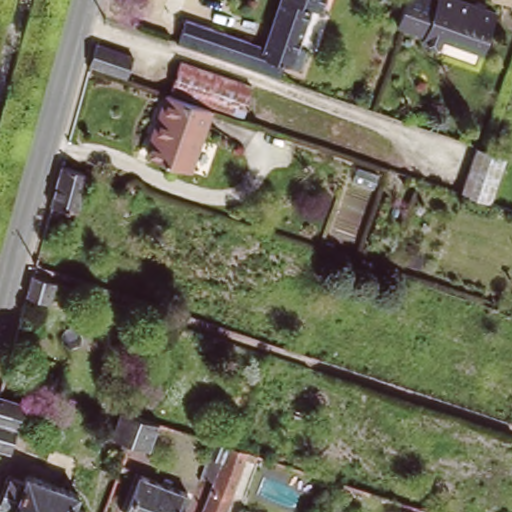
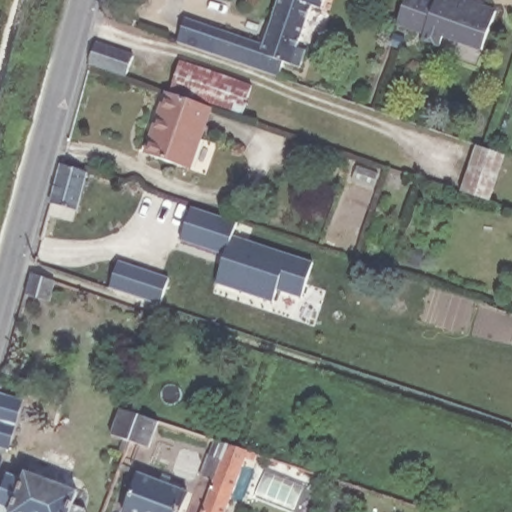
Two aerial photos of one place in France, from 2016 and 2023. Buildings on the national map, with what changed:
unchanged [(277,0),(313,0),(308,14),(276,3),(277,0)]
unchanged [(315,0),(321,0),(320,2),(315,0)]
unchanged [(452,34),(449,43),(430,35),(432,29),(405,19),(412,0),(480,0),(503,9),(489,47),(452,34)]
unchanged [(187,19),(262,45),(276,3),(308,14),(298,43),(309,47),(300,68),(285,63),(280,80),(178,41),(187,19)]
unchanged [(135,71),(98,60),(104,41),(141,56),(135,71)]
unchanged [(188,61),(259,84),(249,112),(178,89),(188,61)]
unchanged [(208,139),(197,170),(153,154),(163,125),(160,122),(171,90),(220,106),(208,139)]
unchanged [(493,202),(466,192),(484,146),(496,150),(512,155),(493,202)]
unchanged [(80,218),(66,214),(70,204),(60,201),(70,163),(93,171),(80,218)]
new [(191,208),(239,224),(235,238),(315,263),(302,299),(276,291),(274,302),(218,285),(223,255),(181,242),(191,208)]
new [(118,262),(171,279),(162,307),(111,290),(118,262)]
unchanged [(52,306),(28,298),(34,278),(58,286),(52,306)]
unchanged [(25,372),(21,383),(5,378),(9,367),(25,372)]
unchanged [(0,448),(0,416),(5,400),(28,406),(15,453),(0,448)]
unchanged [(155,451),(135,445),(117,439),(126,412),(144,418),(164,424),(155,451)]
unchanged [(211,457),(217,442),(230,446),(246,451),(261,456),(257,465),(248,462),(229,512),(205,512),(224,462),(211,457)]
unchanged [(187,489),(179,512),(126,512),(140,472),(187,489)]
unchanged [(106,512),(14,512),(28,474),(45,480),(47,473),(99,493),(94,506),(105,511),(106,512)]

